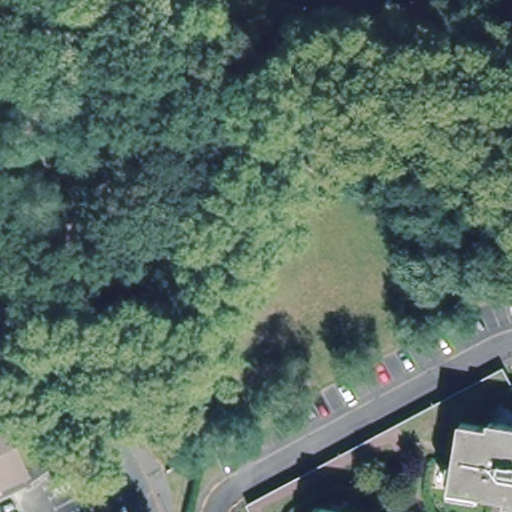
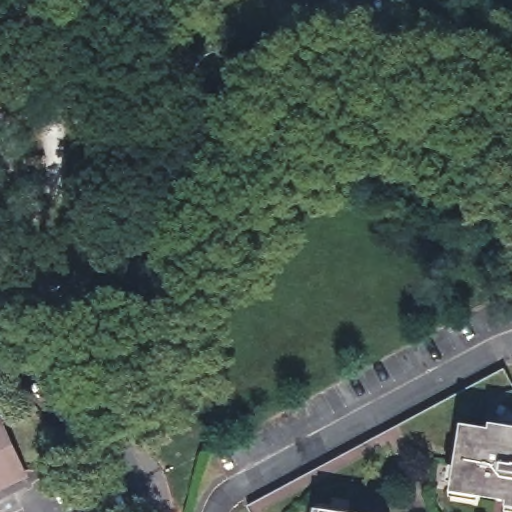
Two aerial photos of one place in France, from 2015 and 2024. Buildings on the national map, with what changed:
unchanged [(512,365),(512,390),(285,512),(269,512),(262,501),(512,365)]
unchanged [(22,465),(0,475),(0,426),(4,424),(22,465)]
unchanged [(500,439),(501,431),(512,434),(512,512),(508,512),(508,509),(458,494),(475,432),(500,439)]
unchanged [(334,511),(339,512),(334,512),(334,511)]

